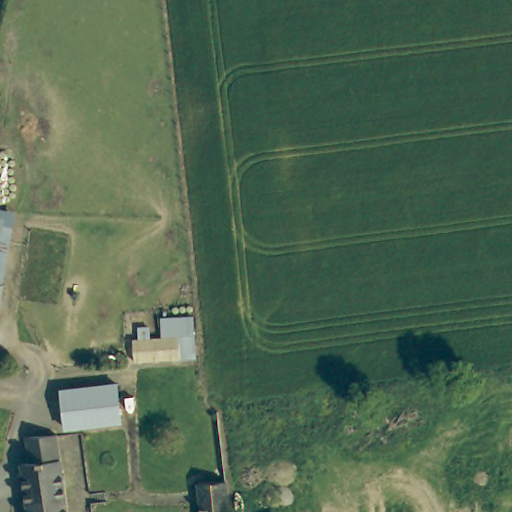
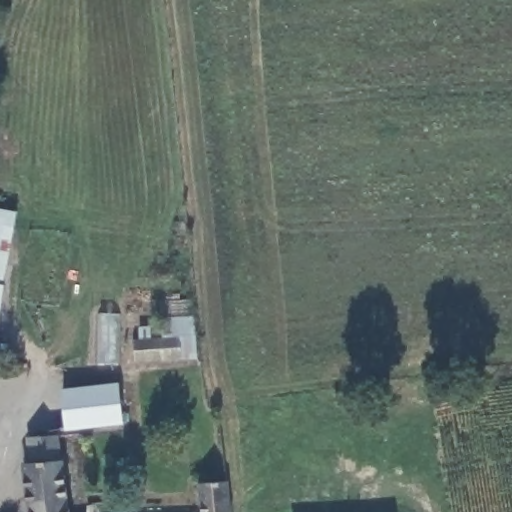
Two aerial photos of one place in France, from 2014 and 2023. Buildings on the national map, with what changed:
unchanged [(13,209),(4,263),(1,282),(10,283),(2,328),(0,328),(0,207),(13,209)]
unchanged [(136,362),(134,340),(192,336),(203,347),(194,358),(136,362)]
unchanged [(119,391),(119,427),(64,428),(62,392),(119,391)]
unchanged [(73,512),(32,512),(25,467),(34,466),(30,442),(60,435),(73,512)]
unchanged [(203,482),(211,482),(210,467),(230,467),(230,482),(235,483),(235,512),(205,512),(203,482)]

